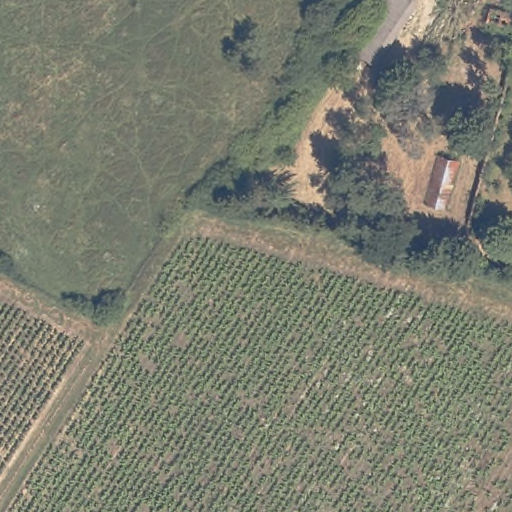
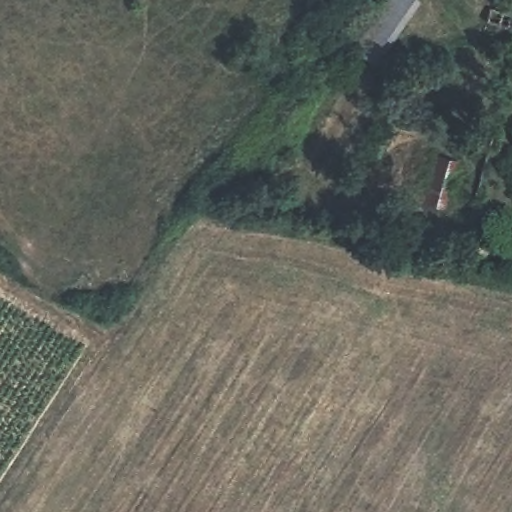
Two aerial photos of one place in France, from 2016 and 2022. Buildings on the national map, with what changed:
unchanged [(349,45),(379,0),(422,0),(378,65),(349,45)]
unchanged [(488,9),(512,15),(512,31),(484,22),(488,9)]

